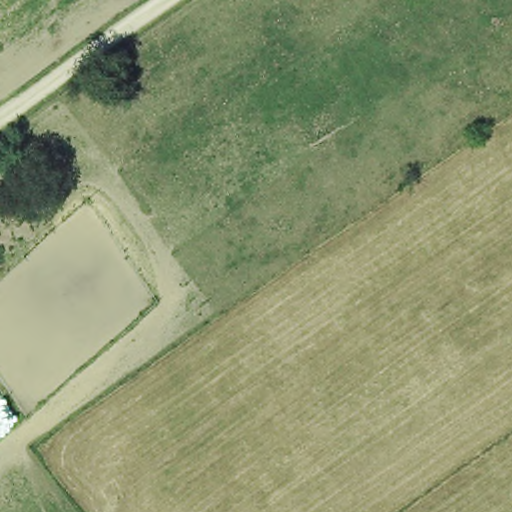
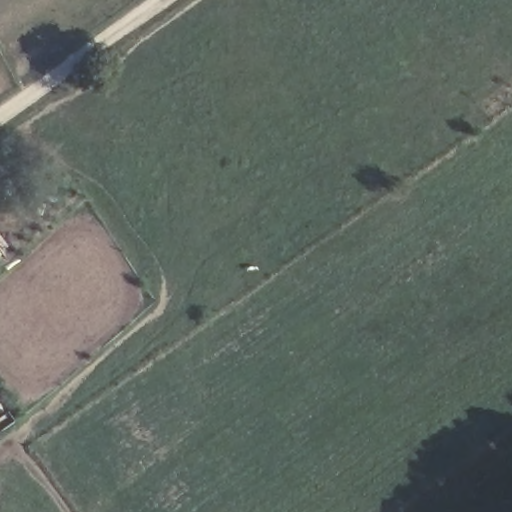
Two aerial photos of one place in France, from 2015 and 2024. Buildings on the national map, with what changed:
[]

